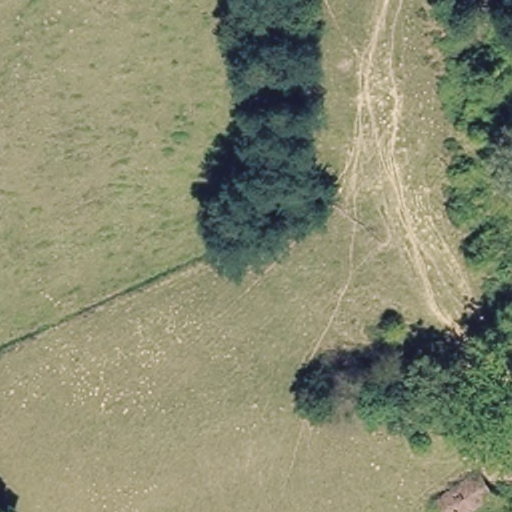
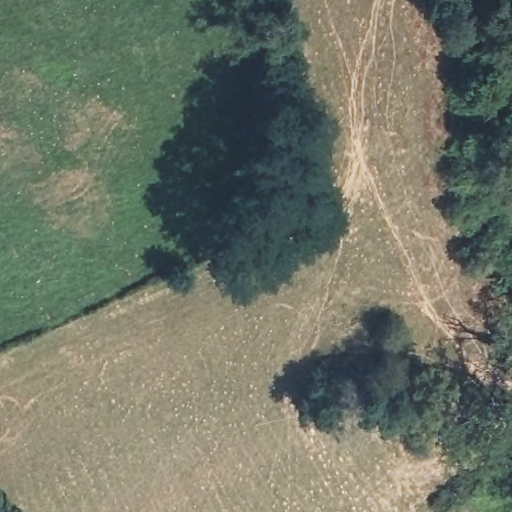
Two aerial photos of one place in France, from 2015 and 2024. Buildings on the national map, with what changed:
unchanged [(444,512),(436,500),(477,475),(491,495),(463,512),(444,512)]

